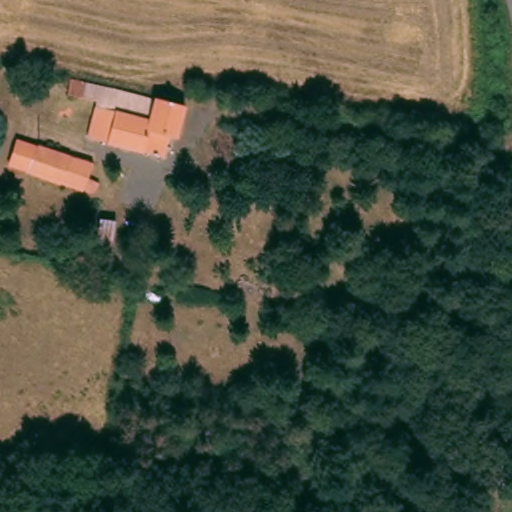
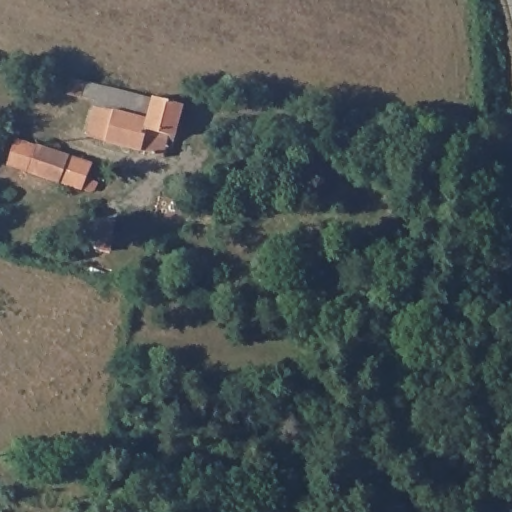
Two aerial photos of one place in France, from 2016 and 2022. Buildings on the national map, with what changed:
unchanged [(107,109),(109,100),(97,98),(82,95),(68,92),(72,76),(86,79),(101,82),(112,85),(154,95),(149,118),(107,109)]
unchanged [(179,100),(184,101),(190,103),(181,136),(172,134),(146,127),(149,118),(154,95),(179,100)]
unchanged [(107,109),(149,118),(146,127),(172,134),(167,152),(88,133),(94,106),(107,109)]
unchanged [(87,170),(102,174),(97,190),(84,186),(59,180),(24,169),(0,162),(7,136),(30,142),(67,152),(90,158),(87,170)]
unchanged [(130,215),(126,247),(109,244),(113,213),(130,215)]

